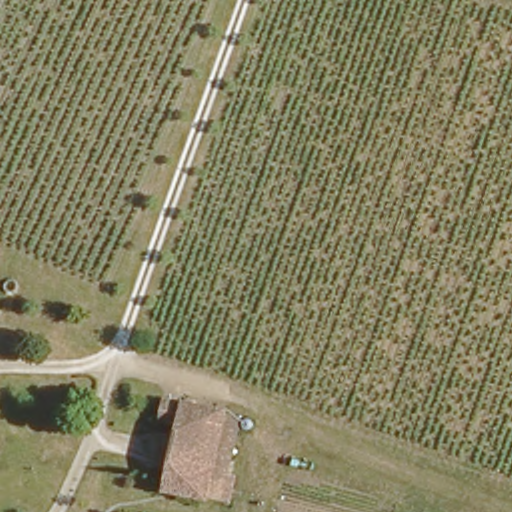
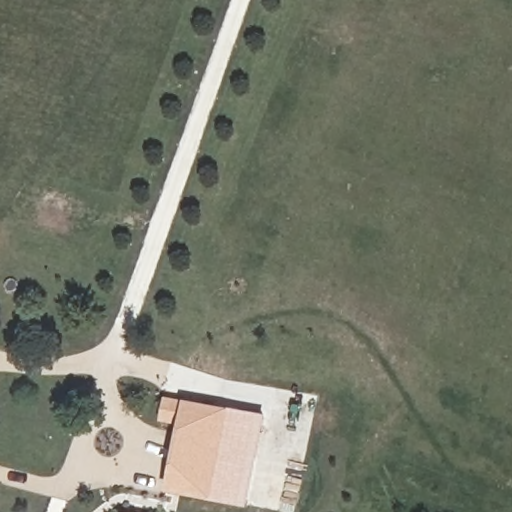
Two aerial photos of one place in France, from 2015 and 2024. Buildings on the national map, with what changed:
unchanged [(161,487),(179,413),(157,408),(162,387),(226,403),(206,500),(161,487)]
new [(226,406),(265,413),(247,506),(206,500),(226,406)]

